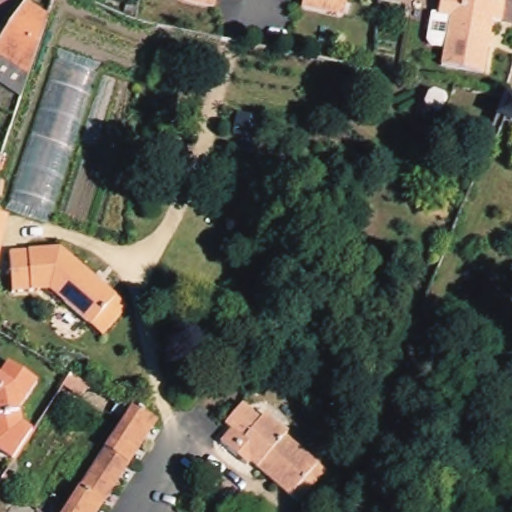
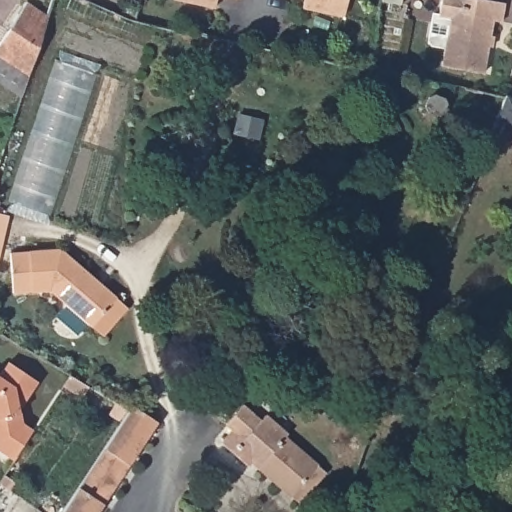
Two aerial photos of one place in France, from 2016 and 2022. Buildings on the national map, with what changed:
unchanged [(213,8),(171,0),(215,0),(213,8)]
unchanged [(341,18),(300,11),(301,0),(344,0),(341,18)]
unchanged [(507,3),(504,22),(495,20),(485,73),(443,66),(452,18),(441,16),(444,0),(489,0),(507,3)]
unchanged [(19,10),(44,19),(20,80),(12,102),(0,95),(0,38),(19,10)]
unchanged [(48,215),(6,203),(53,61),(94,75),(48,215)]
unchanged [(428,91),(437,94),(441,100),(437,110),(431,113),(420,109),(418,104),(422,93),(428,91)]
unchanged [(12,255),(63,254),(97,287),(127,316),(100,343),(84,327),(50,294),(13,295),(12,255)]
unchanged [(8,366),(38,385),(21,410),(24,422),(34,429),(26,442),(15,460),(0,451),(0,377),(8,366)]
unchanged [(92,458),(104,439),(115,421),(122,410),(125,405),(150,420),(147,424),(94,512),(58,512),(60,509),(92,458)]
unchanged [(233,431),(226,426),(242,406),(262,422),(266,417),(290,435),(287,439),(327,469),(302,501),(252,463),(249,467),(222,445),(233,431)]

